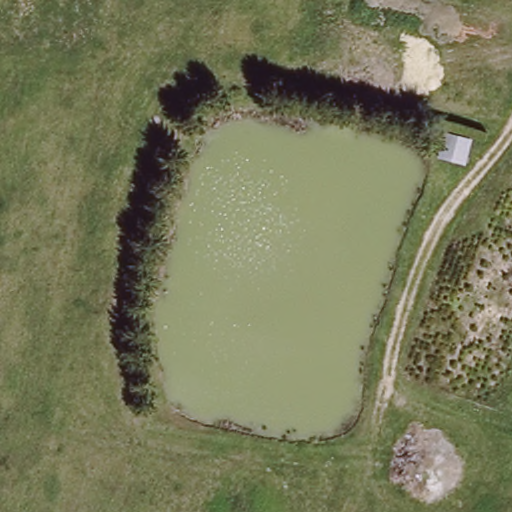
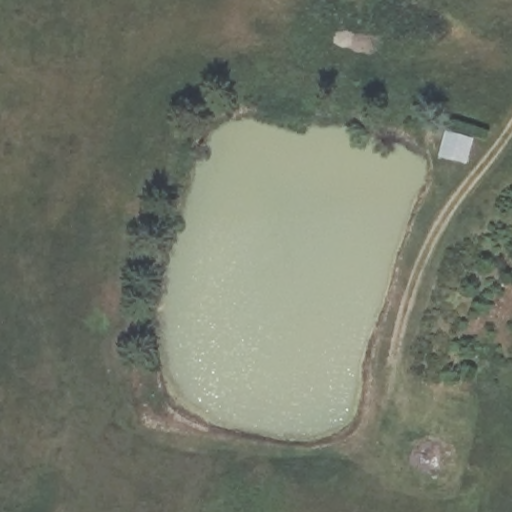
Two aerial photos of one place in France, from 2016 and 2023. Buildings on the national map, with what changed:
unchanged [(469,166),(438,161),(444,136),(472,143),(469,166)]

